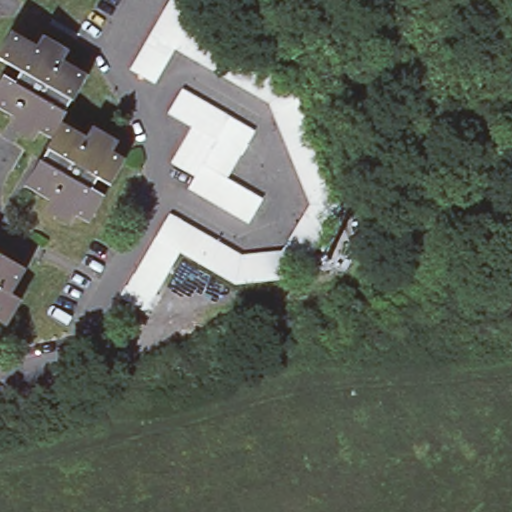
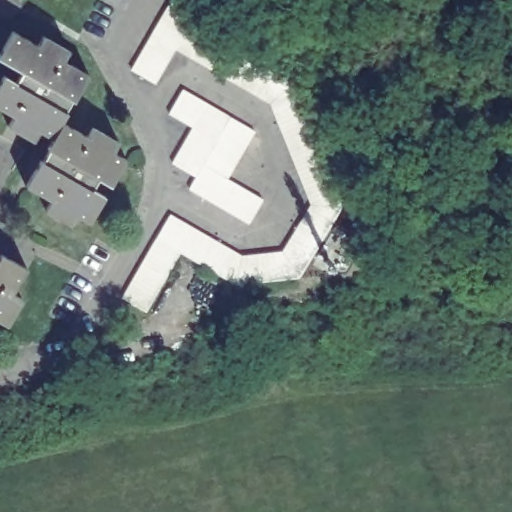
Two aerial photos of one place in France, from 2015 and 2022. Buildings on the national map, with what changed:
unchanged [(150,245),(156,233),(170,210),(182,217),(193,223),(205,230),(217,237),(230,244),(241,251),(255,249),(268,248),(282,247),(290,235),(297,223),(303,211),(310,200),(305,187),(300,174),(295,161),(290,149),(285,136),(280,123),(275,111),(270,98),(258,91),(246,84),(234,78),(222,71),(210,64),(199,57),(187,50),(175,44),(169,54),(162,66),(155,78),(131,65),(138,52),(145,40),(152,29),(158,17),(165,5),(168,0),(185,0),(197,7),(190,19),(189,20),(201,26),(212,33),(225,40),(236,47),(248,54),(260,60),(272,67),(292,79),(300,100),(305,113),(311,126),(316,138),(321,151),(327,163),(332,176),(342,202),(338,207),(327,226),(320,237),(313,249),(299,273),(272,276),(258,277),(235,279),(215,268),(203,261),(192,254),(180,247),(173,259),(167,271),(160,282),(153,294),(145,307),(122,293),(129,281),(136,269),(142,257),(150,245)]
unchanged [(42,40),(48,31),(75,46),(69,55),(94,70),(79,96),(77,95),(70,106),(72,107),(67,117),(57,134),(45,126),(39,136),(12,121),(18,111),(0,101),(0,86),(8,71),(20,78),(27,67),(2,52),(17,26),(42,40)]
unchanged [(188,184),(195,172),(172,158),(179,146),(186,134),(192,123),(180,116),(168,109),(182,85),(195,91),(207,98),(218,105),(230,112),(255,126),(247,138),(240,149),(233,161),(227,173),(239,180),(251,187),(262,194),(249,218),(237,211),(225,204),(212,197),(201,191),(188,184)]
unchanged [(92,131),(98,122),(125,137),(119,146),(131,154),(116,181),(103,173),(97,184),(110,192),(94,218),(82,211),(76,220),(50,205),(55,195),(30,181),(45,154),(47,156),(53,144),(52,143),(57,134),(67,117),(92,131)]
unchanged [(0,317),(0,248),(2,249),(11,254),(27,264),(12,289),(22,294),(7,321),(0,317)]

